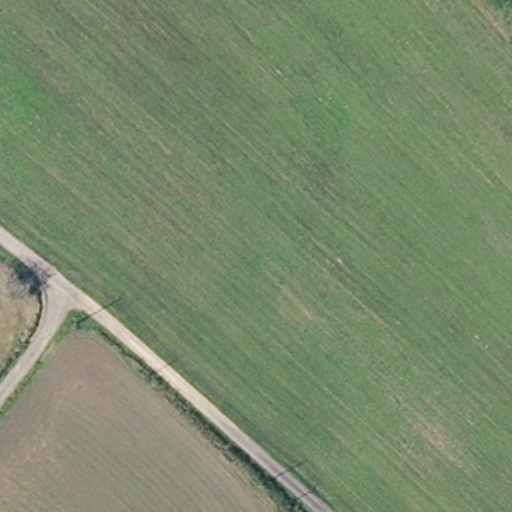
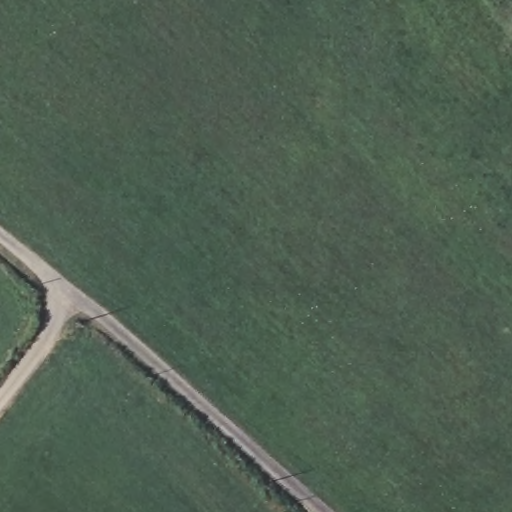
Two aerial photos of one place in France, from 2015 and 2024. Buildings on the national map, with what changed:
[]

